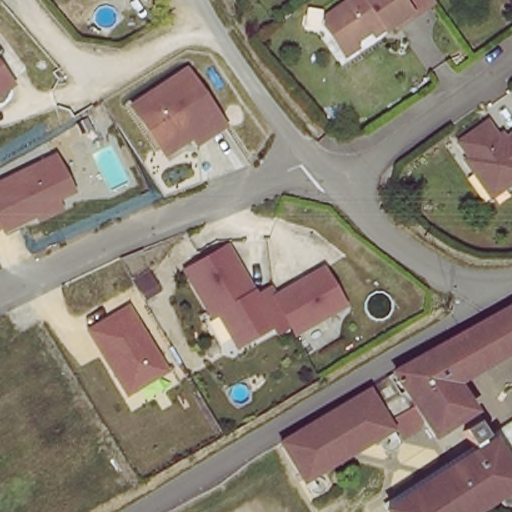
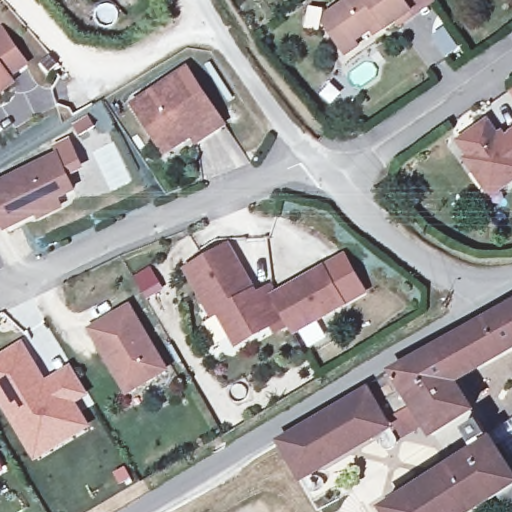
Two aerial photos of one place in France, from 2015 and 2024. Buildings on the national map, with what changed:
unchanged [(352,59),(336,36),(323,18),(349,0),(430,0),(415,11),(390,30),(385,24),(360,42),(365,49),(352,59)]
unchanged [(12,86),(0,94),(0,69),(12,86)]
unchanged [(219,127),(192,143),(187,136),(161,153),(129,103),(185,70),(219,127)]
unchanged [(512,85),(512,100),(505,90),(512,85)]
unchanged [(460,157),(465,153),(453,138),(480,118),(492,134),(512,120),(512,176),(500,183),(486,193),(472,173),(460,157)]
unchanged [(57,199),(62,206),(36,219),(33,214),(5,231),(0,227),(0,183),(58,153),(76,190),(57,199)]
unchanged [(179,260),(222,238),(248,290),(262,282),(267,291),(316,266),(335,303),(287,327),(284,329),(280,321),(266,328),(262,321),(221,343),(179,260)]
unchanged [(512,300),(512,334),(460,365),(480,399),(437,425),(428,410),(398,366),(512,300)]
unchanged [(125,397),(87,328),(128,304),(169,372),(125,397)]
new [(36,462),(0,403),(0,356),(21,343),(47,381),(71,366),(90,395),(76,404),(91,428),(36,462)]
unchanged [(428,410),(394,430),(386,417),(366,384),(398,366),(428,410)]
unchanged [(274,439),(280,436),(293,428),(298,425),(310,418),(319,412),(366,384),(386,417),(320,457),(313,461),(293,473),(274,439)]
unchanged [(495,426),(476,438),(466,422),(485,411),(495,426)]
unchanged [(512,443),(512,457),(475,480),(460,457),(503,430),(512,443)]
unchanged [(481,489),(445,512),(414,512),(401,492),(460,457),(475,480),(481,489)]
unchanged [(503,475),(481,489),(475,480),(512,457),(512,491),(511,491),(503,475)]
new [(0,474),(0,462),(5,471),(0,474)]

